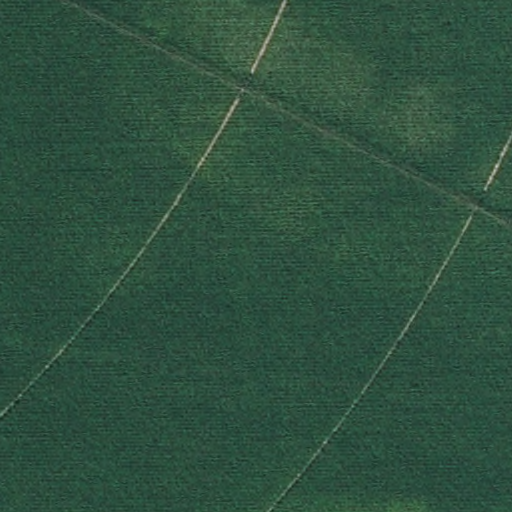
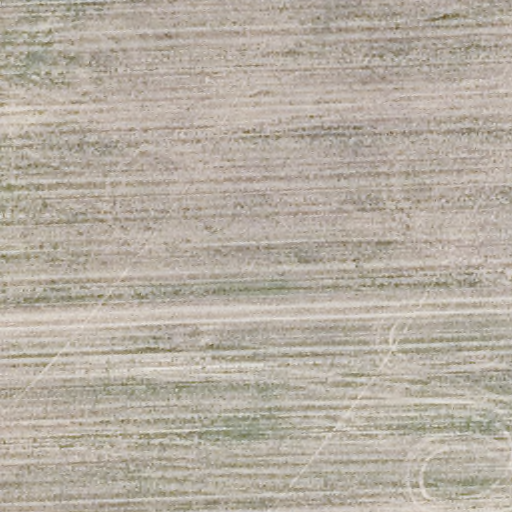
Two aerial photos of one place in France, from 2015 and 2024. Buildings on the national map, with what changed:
[]

